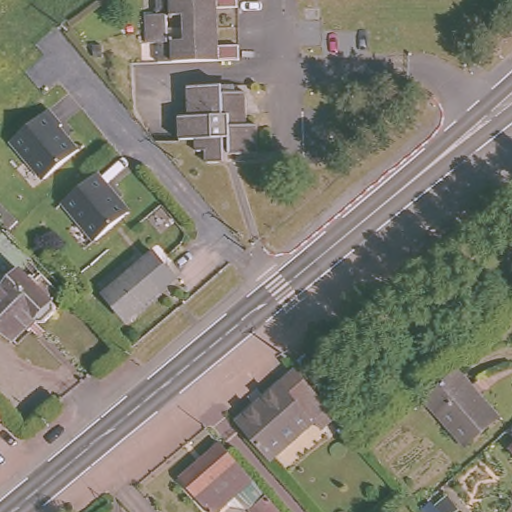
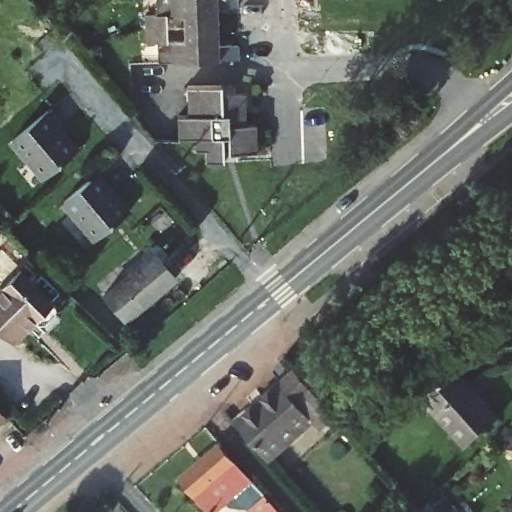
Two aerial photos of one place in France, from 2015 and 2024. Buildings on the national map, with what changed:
unchanged [(220,4),(220,23),(195,24),(195,10),(177,11),(178,24),(147,25),(147,11),(160,11),(160,0),(240,0),(240,3),(220,4)]
unchanged [(178,24),(178,37),(195,37),(195,24),(220,23),(222,41),(242,41),(242,56),(162,58),(161,39),(148,40),(147,25),(178,24)]
unchanged [(227,92),(250,92),(250,126),(260,125),(262,153),(234,154),(234,151),(229,151),(229,162),(210,163),(210,151),(200,151),(200,139),(184,140),(183,116),(195,115),(194,86),(227,85),(227,92)]
unchanged [(64,128),(60,130),(79,152),(42,182),(10,142),(48,110),(64,128)]
unchanged [(129,214),(92,241),(63,204),(100,175),(129,214)]
unchanged [(174,278),(125,319),(105,295),(154,253),(174,278)]
unchanged [(38,276),(55,293),(46,302),(50,307),(52,313),(42,323),(34,323),(30,320),(10,342),(0,333),(0,289),(13,275),(10,272),(12,269),(15,272),(29,286),(38,276)]
unchanged [(307,353),(300,360),(297,356),(304,350),(307,353)]
unchanged [(282,379),(297,365),(300,369),(325,397),(328,401),(336,410),(320,424),(312,415),(282,379)]
unchanged [(475,399),(478,397),(497,418),(464,447),(424,401),(454,374),(475,399)]
unchanged [(267,456),(236,420),(282,379),(312,415),(267,456)]
unchanged [(5,416),(0,421),(0,412),(5,416)]
unchanged [(249,506),(232,504),(226,498),(211,512),(210,512),(180,477),(220,441),(252,477),(262,488),(265,492),(283,512),(254,512),(249,506)]

